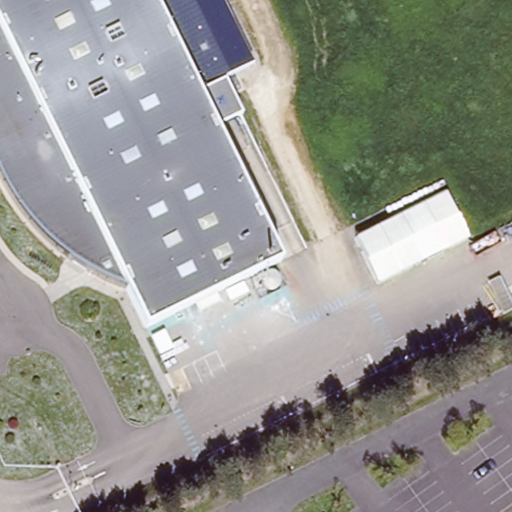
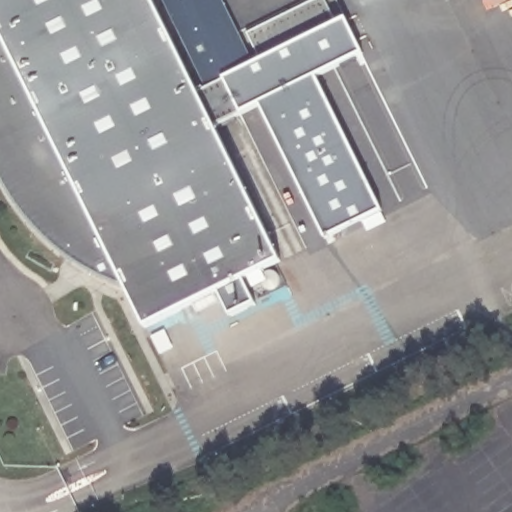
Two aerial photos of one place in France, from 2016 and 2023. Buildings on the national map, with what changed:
unchanged [(146,326),(126,289),(114,284),(102,279),(91,273),(81,267),(64,256),(55,249),(44,239),(38,232),(32,226),(23,216),(15,204),(10,196),(2,183),(0,179),(0,0),(151,0),(198,93),(224,80),(240,113),(213,126),(280,260),(146,326)]
unchanged [(198,93),(151,0),(221,0),(252,63),(224,80),(198,93)]
new [(259,106),(240,113),(224,81),(252,63),(259,59),(246,32),(315,0),(326,0),(338,23),(346,18),(363,53),(316,76),(382,211),(324,239),(259,106)]
new [(491,8),(487,0),(507,0),(491,8)]
demolished [(432,248),(383,269),(361,224),(411,202),(432,248)]

